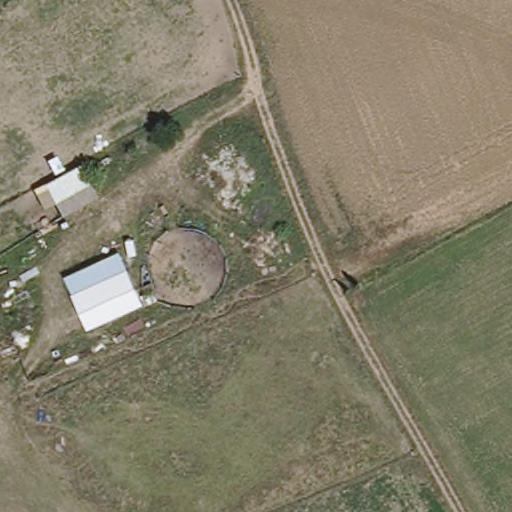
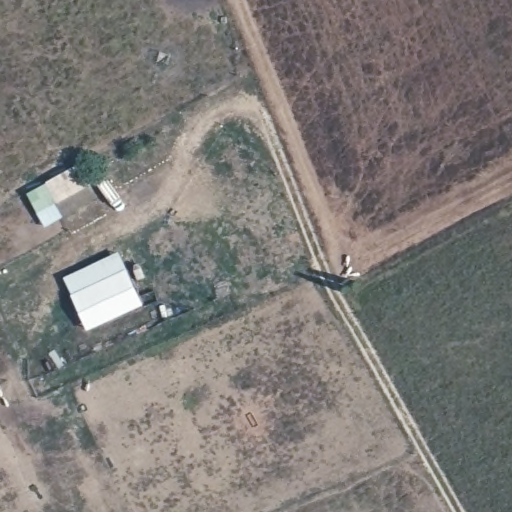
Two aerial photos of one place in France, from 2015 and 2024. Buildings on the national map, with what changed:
unchanged [(90,188),(46,212),(31,190),(77,171),(90,188)]
unchanged [(141,309),(100,326),(93,310),(78,316),(69,293),(126,270),(141,309)]

